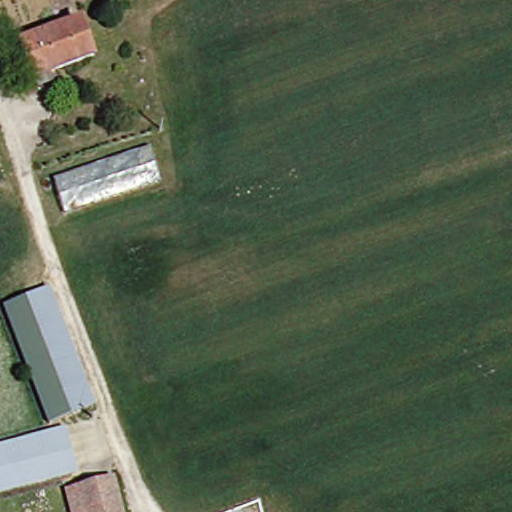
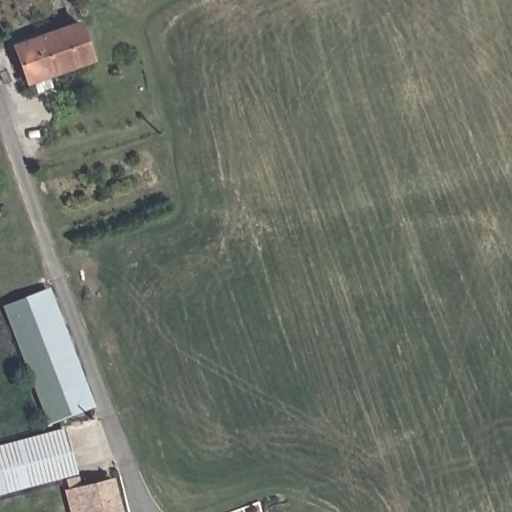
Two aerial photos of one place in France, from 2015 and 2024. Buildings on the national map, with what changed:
unchanged [(77,28),(91,63),(31,88),(17,51),(77,28)]
unchanged [(159,194),(64,220),(51,183),(148,155),(159,194)]
unchanged [(51,292),(99,410),(49,428),(3,311),(51,292)]
unchanged [(0,498),(0,448),(68,432),(81,478),(0,498)]
unchanged [(79,512),(75,496),(110,487),(117,512),(79,512)]

